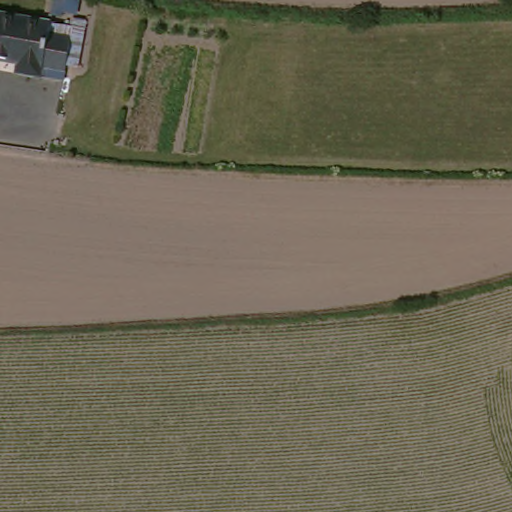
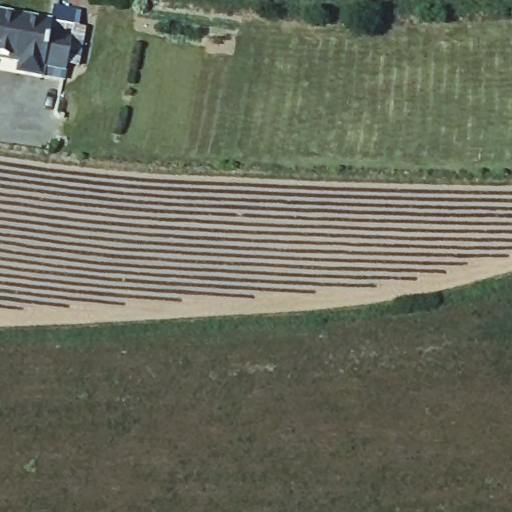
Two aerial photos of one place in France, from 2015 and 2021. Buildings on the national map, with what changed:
unchanged [(40,66),(39,72),(8,68),(9,60),(0,59),(0,6),(49,13),(49,18),(67,19),(59,68),(40,66)]

